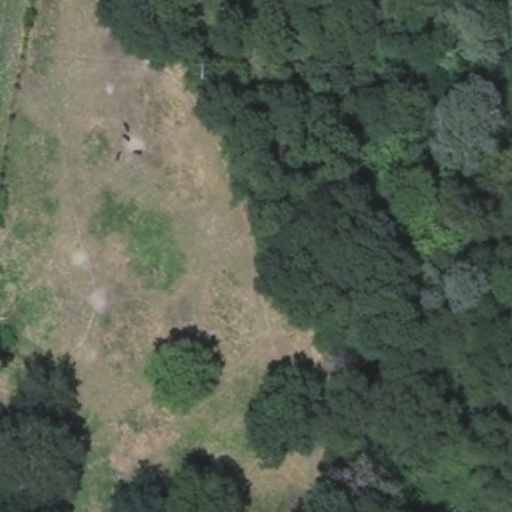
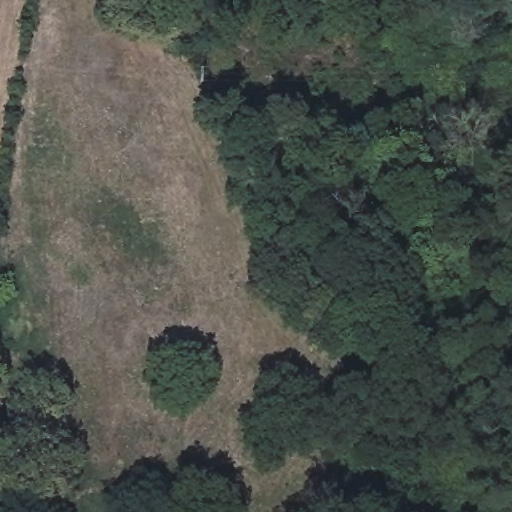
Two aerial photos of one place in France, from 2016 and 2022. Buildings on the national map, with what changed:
[]

